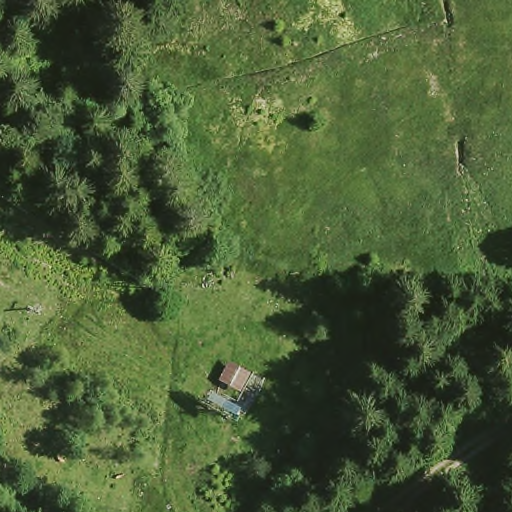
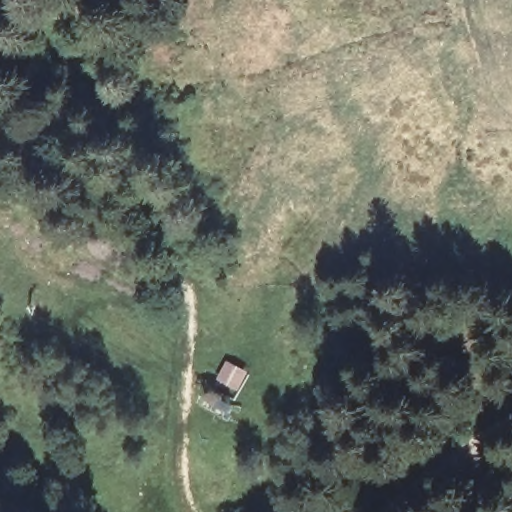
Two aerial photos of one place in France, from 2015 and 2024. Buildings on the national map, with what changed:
unchanged [(189,225),(192,230),(182,236),(180,230),(189,225)]
unchanged [(239,390),(217,380),(227,359),(249,370),(239,390)]

